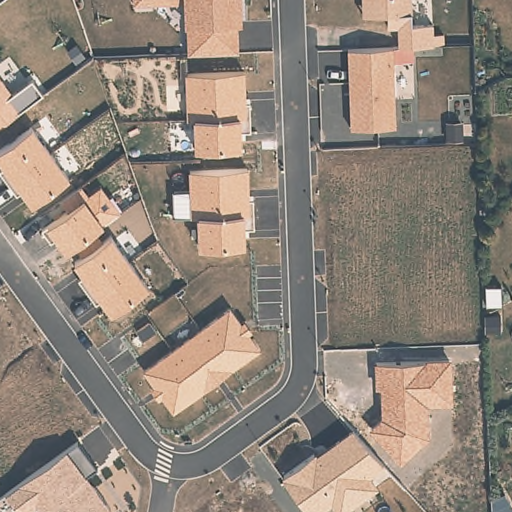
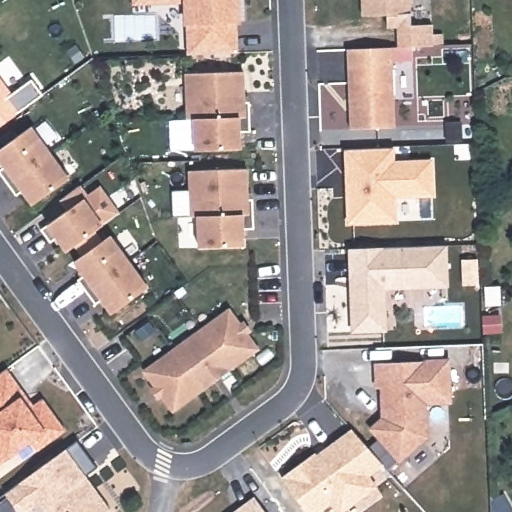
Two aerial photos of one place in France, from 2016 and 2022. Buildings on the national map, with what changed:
unchanged [(132,5),(132,0),(239,0),(237,53),(187,54),(183,3),(132,5)]
unchanged [(434,24),(433,34),(442,34),(442,43),(435,46),(414,48),(414,60),(393,61),(397,126),(351,129),(346,50),(398,48),(397,28),(388,27),(387,15),(364,16),(363,0),(412,0),(412,24),(434,24)]
unchanged [(194,120),(185,121),(185,74),(245,71),(246,99),(250,99),(250,131),(241,131),(241,150),(195,150),(194,120)]
unchanged [(12,93),(31,79),(44,96),(0,126),(0,75),(12,93)]
unchanged [(70,178),(34,205),(24,191),(18,195),(0,173),(0,170),(5,166),(0,160),(0,149),(33,126),(70,178)]
new [(434,196),(396,198),(397,224),(347,226),(345,148),(393,147),(393,161),(432,160),(434,196)]
unchanged [(196,218),(189,218),(189,215),(172,216),(171,191),(188,190),(188,171),(249,169),(250,196),(254,196),(253,228),(245,229),(245,245),(199,247),(196,218)]
unchanged [(89,194),(102,185),(121,214),(97,231),(105,242),(114,236),(150,287),(111,312),(101,301),(95,305),(78,279),(85,276),(75,262),(81,256),(75,247),(65,252),(55,238),(49,241),(41,229),(67,209),(61,200),(81,184),(89,194)]
new [(449,288),(385,290),(386,332),(351,334),(347,249),(447,246),(449,288)]
unchanged [(241,321),(245,319),(254,332),(249,335),(260,351),(171,414),(161,400),(159,402),(150,389),(154,387),(142,371),(229,307),(241,321)]
unchanged [(451,359),(451,405),(428,405),(427,439),(398,464),(368,427),(380,416),(380,390),(373,390),(373,363),(451,359)]
new [(33,405),(43,398),(66,432),(39,453),(32,443),(8,459),(0,464),(0,374),(6,370),(33,405)]
unchanged [(385,466),(370,478),(380,488),(344,512),(336,512),(330,505),(322,512),(307,512),(281,478),(314,452),(317,454),(350,429),(385,466)]
unchanged [(110,512),(45,512),(40,506),(32,512),(0,512),(0,504),(10,498),(6,495),(79,444),(96,468),(85,475),(111,511),(110,512)]
new [(255,497),(267,512),(234,512),(255,497)]

